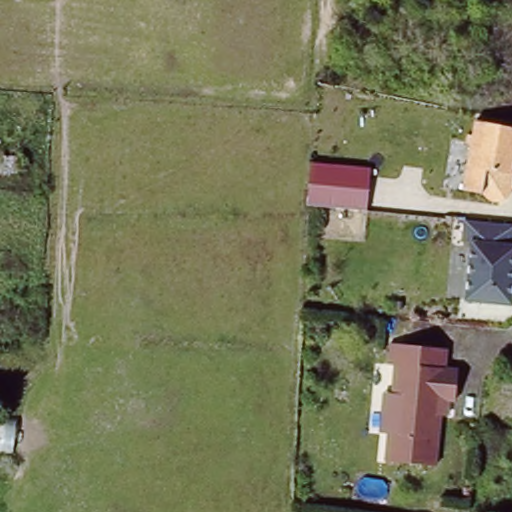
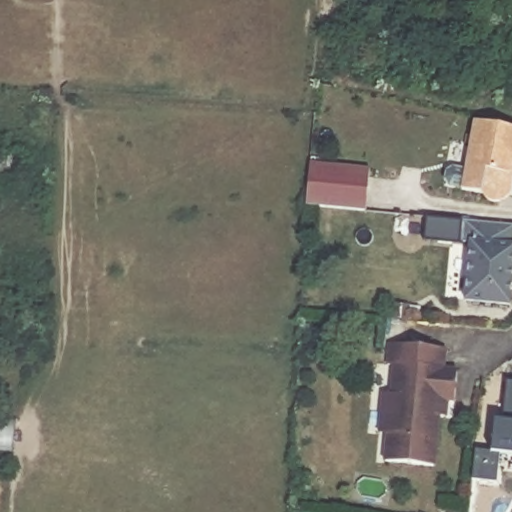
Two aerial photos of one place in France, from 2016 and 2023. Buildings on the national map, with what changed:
unchanged [(507,185),(507,186),(507,187),(508,188),(508,189),(508,191),(508,192),(507,193),(507,194),(507,195),(507,196),(506,197),(505,198),(505,199),(503,200),(503,201),(502,201),(502,202),(500,203),(498,204),(497,204),(495,204),(495,205),(493,205),(492,205),(492,204),(490,204),(489,204),(488,204),(487,203),(485,203),(485,202),(483,201),(482,200),(482,199),(481,198),(480,197),(460,193),(472,124),(512,131),(512,164),(510,164),(507,184),(507,185)]
unchanged [(365,171),(363,211),(303,207),(305,168),(365,171)]
unchanged [(512,225),(512,236),(512,246),(512,290),(511,305),(466,302),(470,244),(462,244),(463,222),(512,225)]
unchanged [(387,394),(392,394),(395,370),(386,369),(388,348),(442,352),(441,372),(453,373),(452,403),(440,402),(435,468),(387,464),(390,435),(384,434),(387,394)]
new [(497,453),(494,482),(469,480),(472,449),(488,451),(492,420),(500,421),(503,381),(512,381),(512,454),(497,453)]
unchanged [(15,451),(0,450),(0,418),(19,419),(15,451)]

